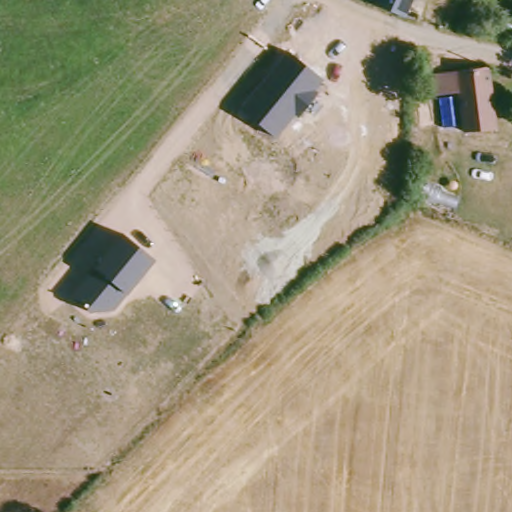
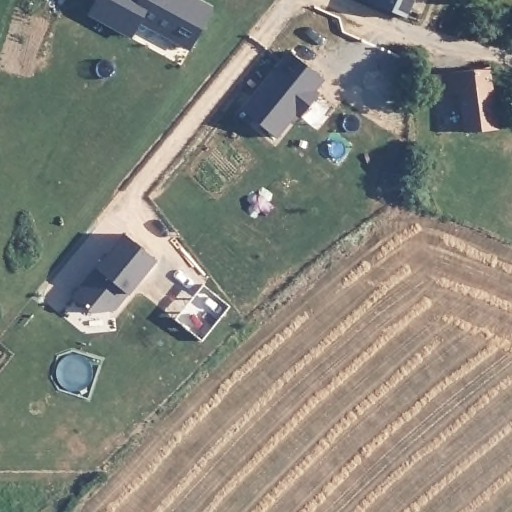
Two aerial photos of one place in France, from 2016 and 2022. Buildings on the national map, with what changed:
new [(190,49),(141,23),(131,37),(89,15),(97,0),(198,0),(211,8),(190,49)]
unchanged [(371,1),(371,0),(417,0),(408,19),(371,1)]
unchanged [(323,81),(316,91),(318,94),(298,118),(294,115),(276,137),(240,111),(286,51),(323,81)]
unchanged [(496,133),(464,133),(464,93),(439,93),(440,73),(497,70),(496,133)]
unchanged [(129,292),(114,311),(88,311),(71,297),(93,267),(122,234),(153,260),(129,292)]

